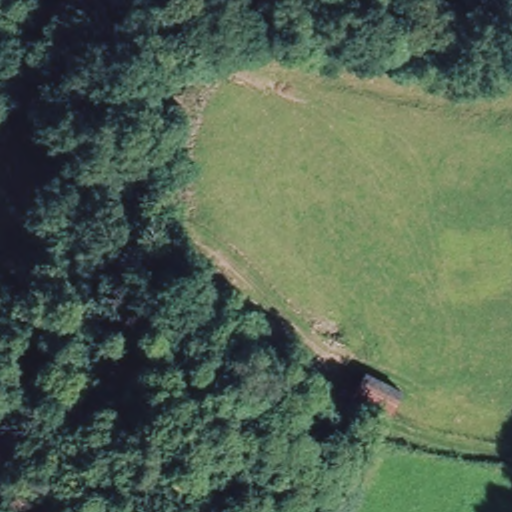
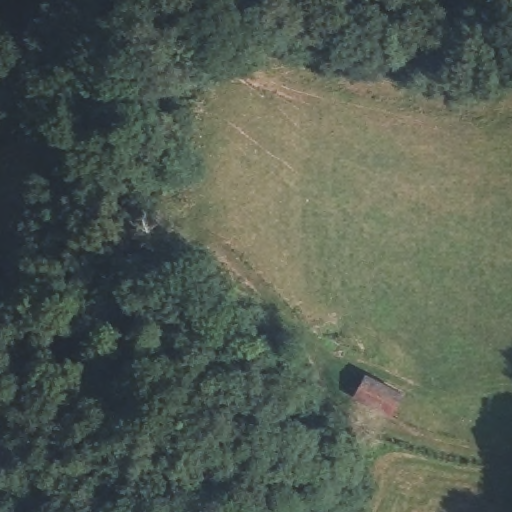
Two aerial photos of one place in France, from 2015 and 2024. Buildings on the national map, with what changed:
unchanged [(347,400),(363,374),(410,400),(390,425),(347,400)]

